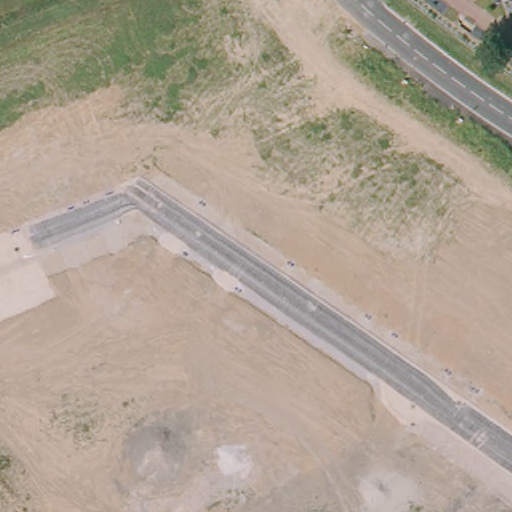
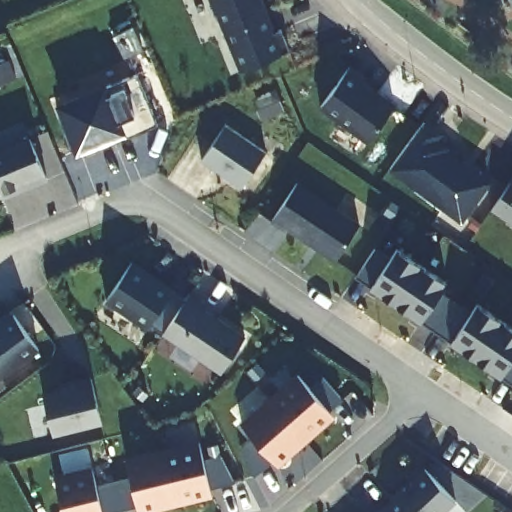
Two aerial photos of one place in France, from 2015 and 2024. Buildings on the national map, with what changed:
unchanged [(281,29),(290,51),(242,71),(219,13),(216,14),(211,0),(261,0),(274,32),(281,29)]
new [(365,77),(362,81),(394,103),(369,141),(321,108),(349,66),(365,77)]
new [(57,102),(106,83),(137,73),(156,122),(126,133),(77,154),(57,102)]
new [(439,134),(435,140),(447,148),(444,151),(489,182),(461,221),(389,169),(423,122),(439,134)]
new [(266,151),(243,187),(203,161),(226,125),(266,151)]
new [(46,179),(4,197),(3,194),(0,195),(0,148),(30,136),(46,179)]
new [(512,178),(512,223),(491,209),(512,178)]
new [(336,261),(288,227),(286,230),(273,221),(299,182),(361,223),(336,261)]
new [(451,342),(421,322),(370,288),(358,276),(376,249),(389,258),(397,247),(449,282),(441,293),(472,312),(478,302),(512,325),(512,384),(501,377),(451,342)]
new [(175,287),(148,328),(105,300),(133,260),(175,287)]
new [(206,301),(203,306),(246,335),(221,372),(162,333),(190,293),(206,301)]
new [(40,350),(0,380),(0,321),(12,311),(40,350)]
new [(258,472),(241,452),(255,440),(240,422),(296,372),(311,389),(323,378),(341,399),(329,410),(336,417),(279,467),(272,459),(258,472)]
new [(76,387),(74,382),(90,378),(101,422),(53,433),(43,395),(76,387)]
new [(210,487),(213,496),(146,512),(139,512),(136,505),(106,512),(63,512),(54,475),(93,465),(96,484),(130,475),(126,458),(199,439),(203,460),(221,455),(236,482),(210,487)]
new [(447,512),(384,512),(383,511),(424,468),(457,503),(447,512)]

